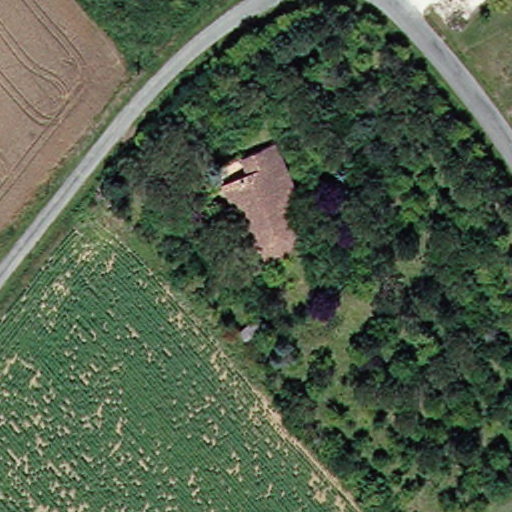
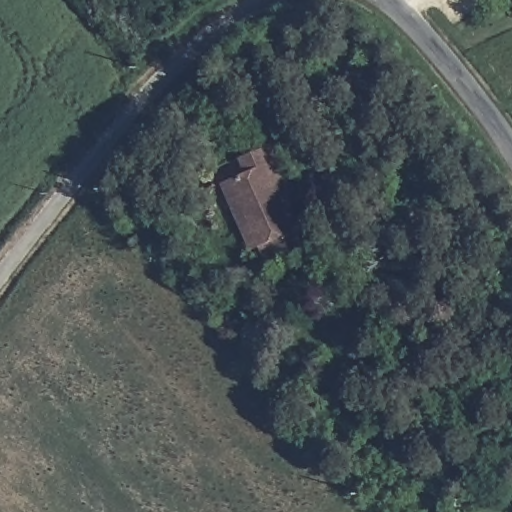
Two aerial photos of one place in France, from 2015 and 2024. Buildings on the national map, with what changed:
unchanged [(221,182),(234,177),(249,172),(245,156),(279,144),(297,205),(282,210),(290,234),(254,245),(242,249),(221,182)]

